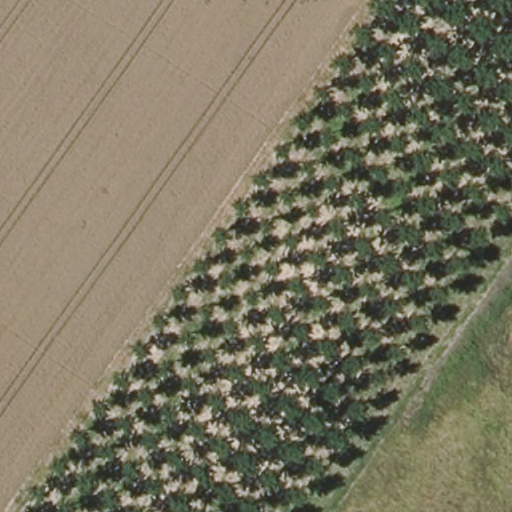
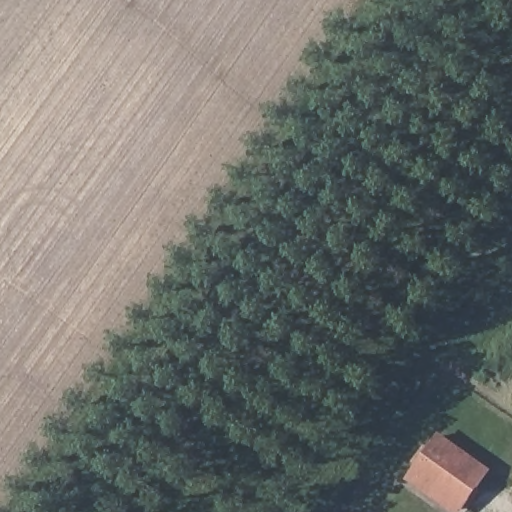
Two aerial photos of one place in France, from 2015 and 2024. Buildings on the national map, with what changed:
new [(481,491),(473,503),(470,501),(462,512),(454,512),(407,478),(417,465),(412,462),(425,443),(431,447),(440,432),(492,470),(480,487),(481,491)]

